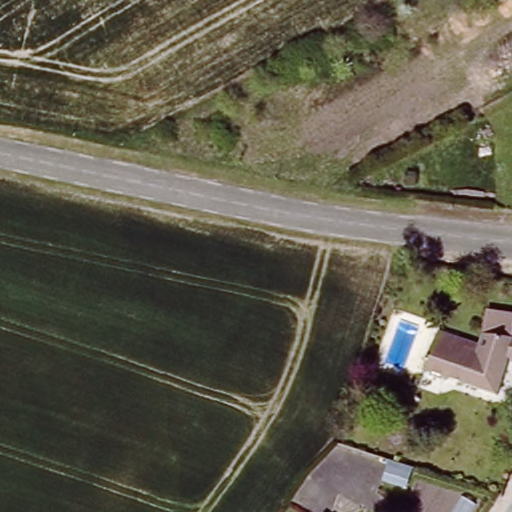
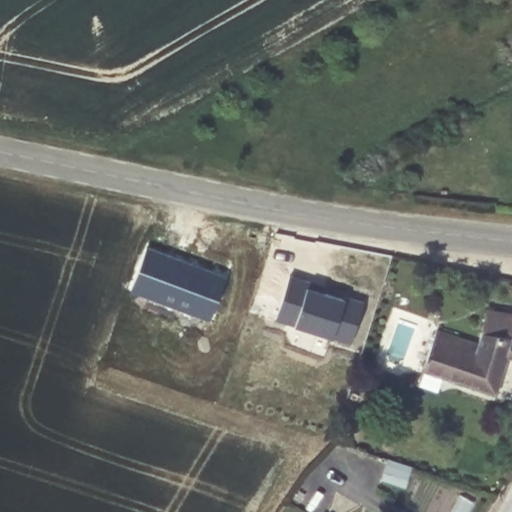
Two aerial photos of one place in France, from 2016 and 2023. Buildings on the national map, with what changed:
new [(148,250),(227,280),(212,322),(132,292),(148,250)]
new [(295,270),(332,282),(330,286),(368,298),(355,339),(280,314),(295,270)]
unchanged [(507,360),(493,395),(422,370),(437,331),(482,347),(485,335),(512,339),(512,360),(507,360)]

